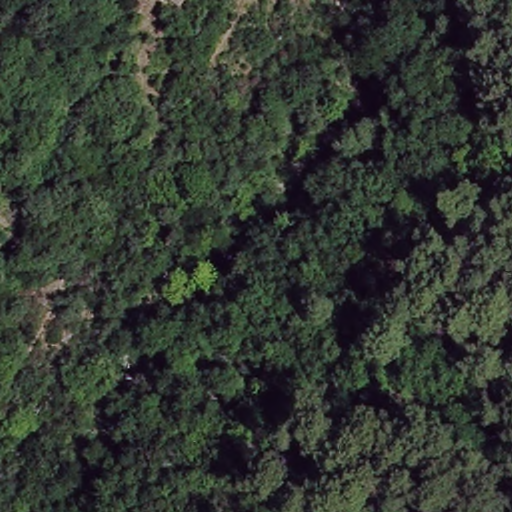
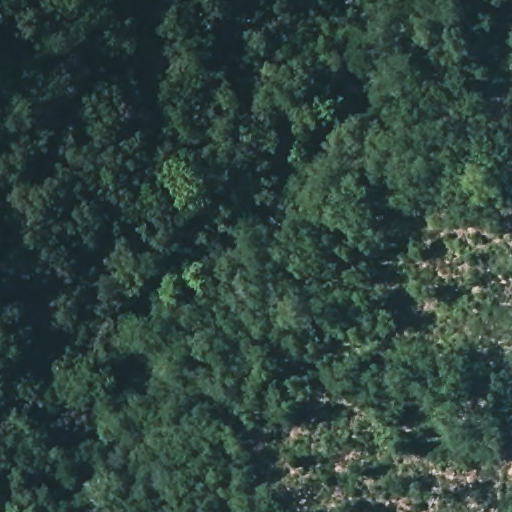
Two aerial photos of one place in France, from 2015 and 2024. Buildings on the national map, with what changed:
unchanged [(160,0),(175,0),(170,7),(160,0)]

